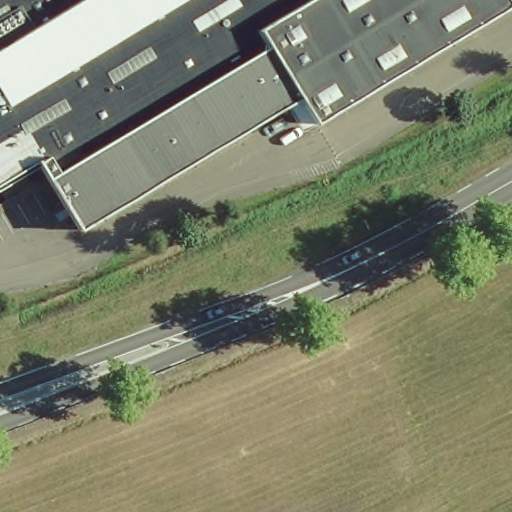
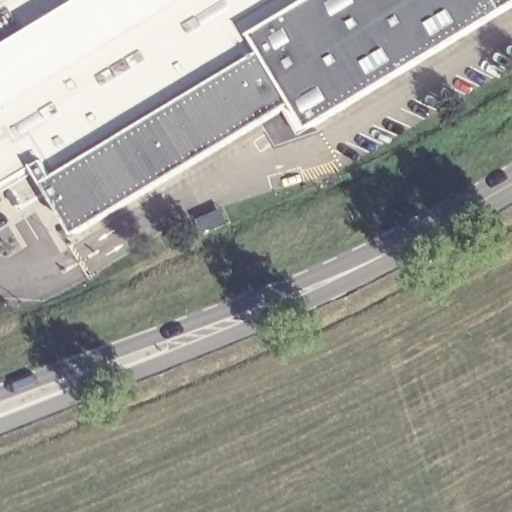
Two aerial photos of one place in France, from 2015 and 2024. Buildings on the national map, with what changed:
unchanged [(260,46),(44,169),(34,152),(0,170),(0,0),(288,0),(247,24),(260,46)]
unchanged [(288,0),(501,0),(504,5),(304,126),(288,97),(260,46),(247,24),(288,0)]
unchanged [(501,0),(511,0),(504,5),(501,0)]
unchanged [(288,97),(74,217),(44,169),(260,46),(288,97)]

